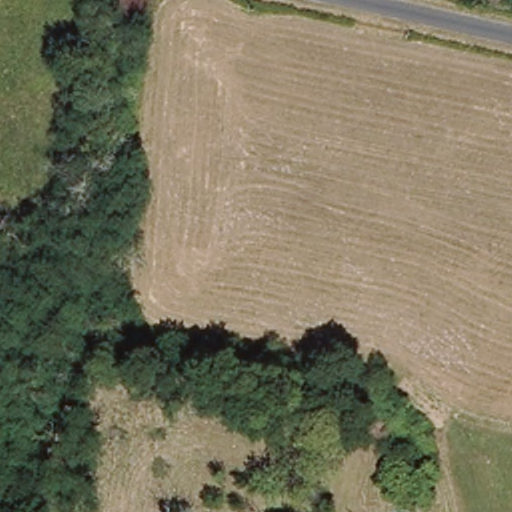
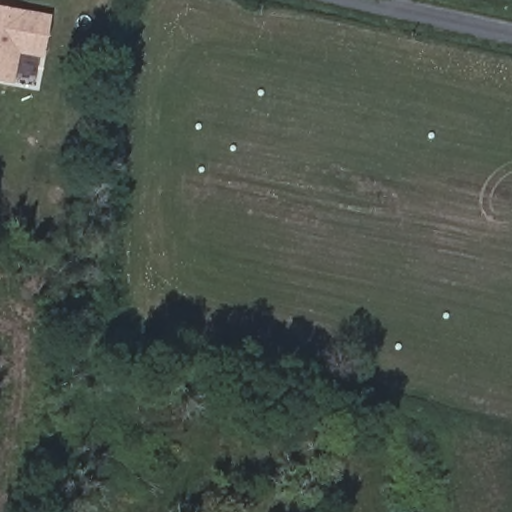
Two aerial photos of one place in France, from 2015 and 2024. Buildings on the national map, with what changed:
new [(49,14),(40,56),(20,53),(14,83),(0,81),(0,6),(49,14)]

